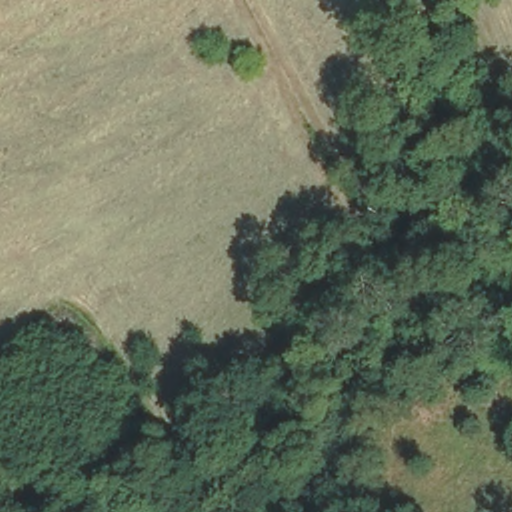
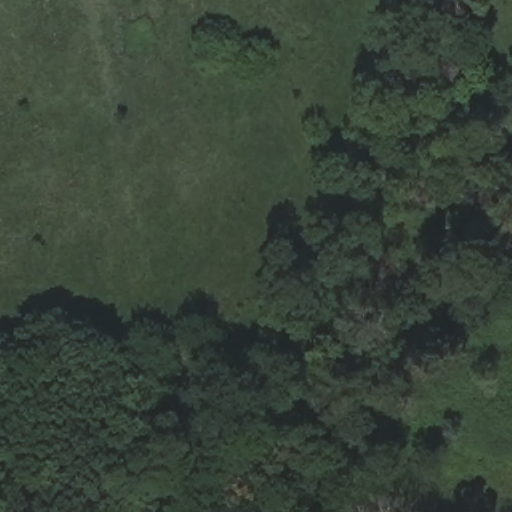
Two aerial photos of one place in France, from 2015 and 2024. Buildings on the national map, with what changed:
[]

